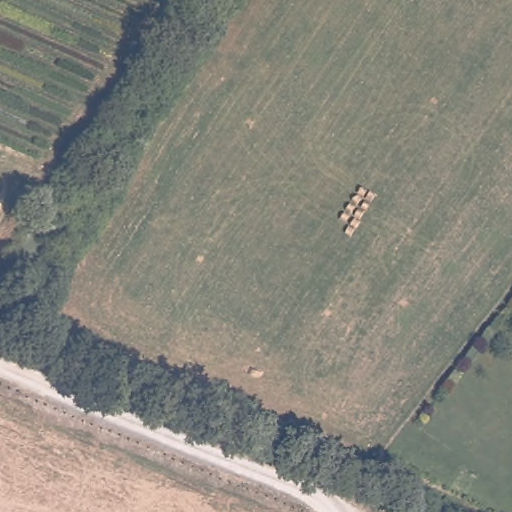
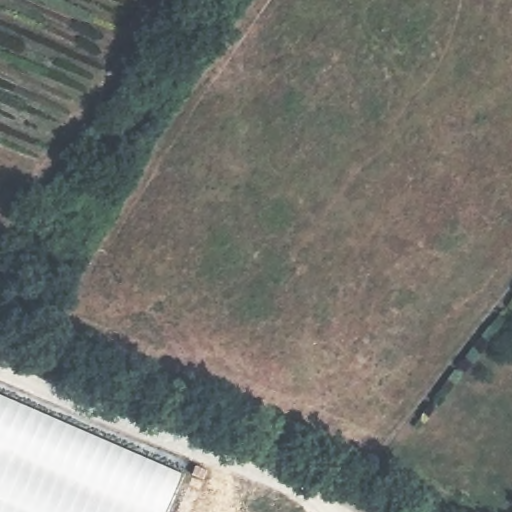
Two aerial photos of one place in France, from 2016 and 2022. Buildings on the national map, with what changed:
new [(0,512),(0,395),(181,473),(164,512),(0,512)]

